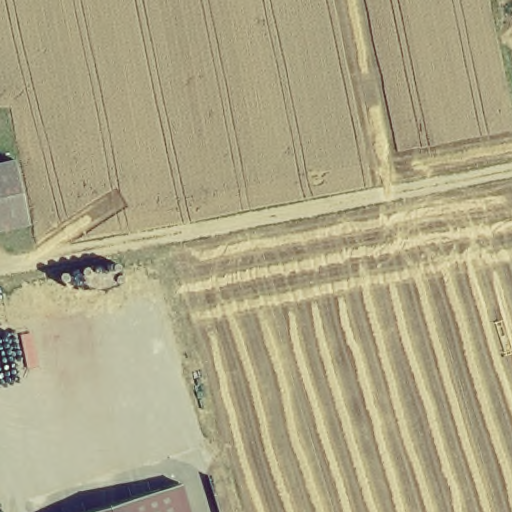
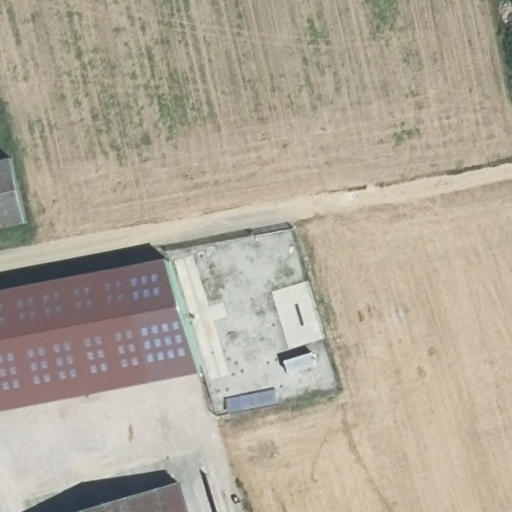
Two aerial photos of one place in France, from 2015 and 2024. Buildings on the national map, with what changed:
unchanged [(0,230),(0,164),(11,162),(25,225),(0,230)]
new [(129,266),(151,383),(0,411),(0,292),(129,266)]
new [(275,388),(278,402),(228,412),(225,398),(275,388)]
unchanged [(189,512),(79,512),(180,482),(189,512)]

